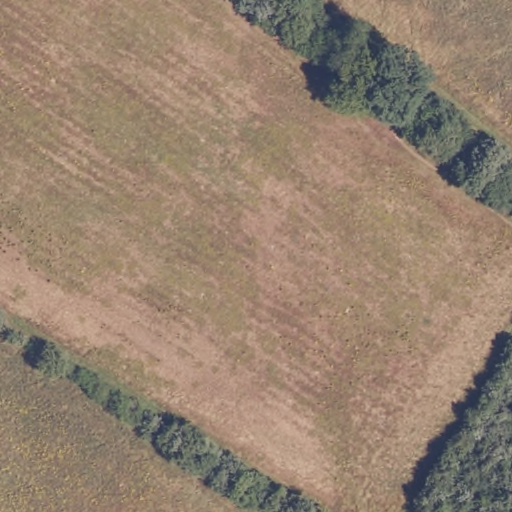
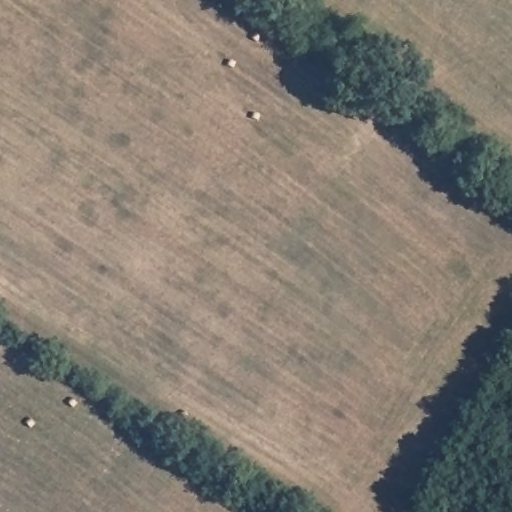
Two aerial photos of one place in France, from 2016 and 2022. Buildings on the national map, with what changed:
[]

